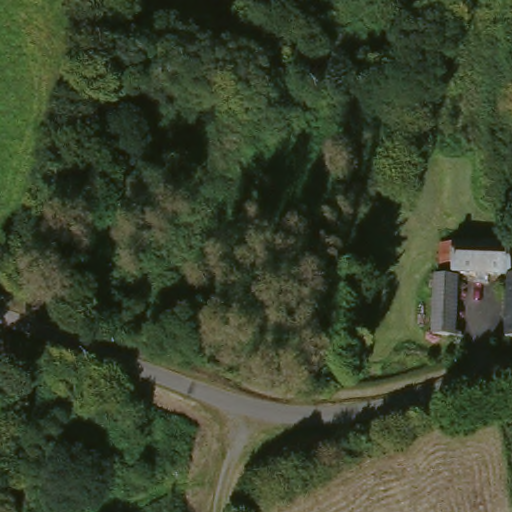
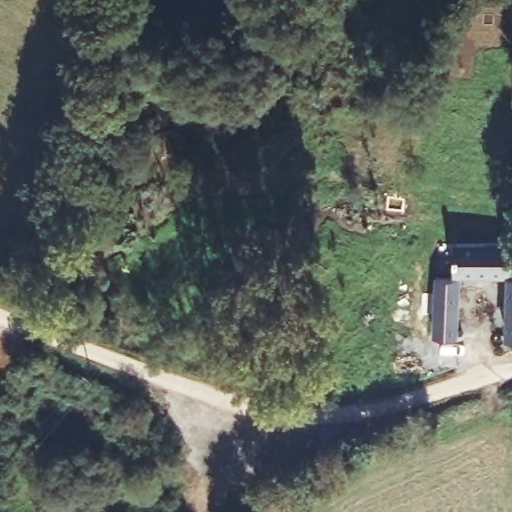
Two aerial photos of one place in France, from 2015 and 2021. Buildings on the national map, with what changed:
unchanged [(448,238),(503,247),(499,275),(476,272),(444,266),(448,238)]
unchanged [(491,330),(501,329),(499,275),(512,275),(512,342),(491,344),(491,330)]
unchanged [(431,279),(453,280),(455,339),(433,339),(431,279)]

